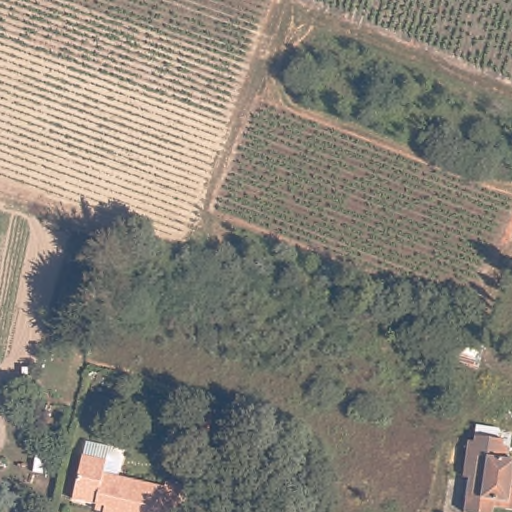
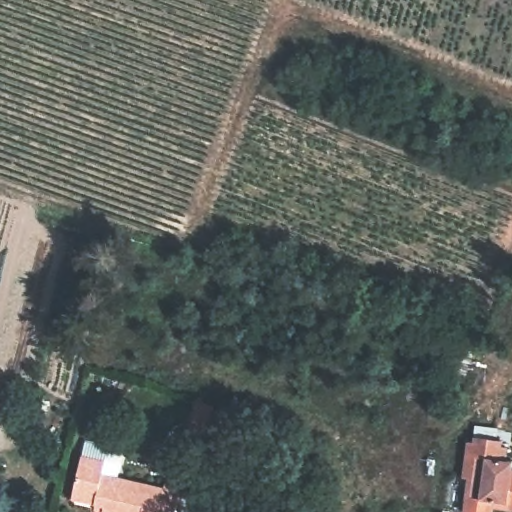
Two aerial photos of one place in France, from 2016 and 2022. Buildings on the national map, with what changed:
unchanged [(512,457),(512,505),(511,505),(510,497),(494,495),(493,512),(489,512),(466,509),(469,470),(464,469),(469,435),(474,436),(474,431),(503,435),(503,440),(509,441),(508,444),(507,457),(512,457)]
unchanged [(69,498),(79,455),(83,441),(106,447),(113,451),(116,456),(116,463),(114,476),(161,488),(163,483),(178,486),(172,512),(100,512),(101,506),(69,498)]

